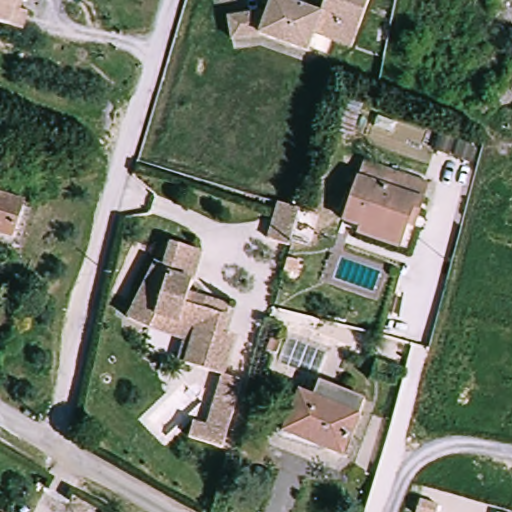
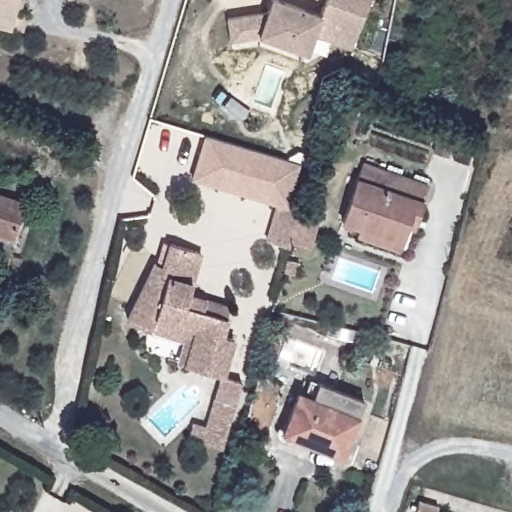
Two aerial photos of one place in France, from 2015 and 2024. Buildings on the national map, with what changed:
unchanged [(0,23),(0,0),(20,0),(16,11),(22,14),(16,29),(0,23)]
unchanged [(308,33),(301,49),(260,31),(245,36),(237,15),(268,4),(270,0),(286,0),(316,13),(321,0),(369,0),(348,50),(308,33)]
unchanged [(337,134),(344,113),(358,118),(352,139),(337,134)]
new [(277,242),(267,239),(273,219),(278,203),(192,178),(205,135),(301,164),(286,205),(299,209),(295,226),(289,246),(277,242)]
unchanged [(358,235),(360,225),(342,220),(358,163),(427,182),(418,214),(415,225),(406,223),(402,237),(399,247),(358,235)]
unchanged [(29,192),(16,234),(0,229),(0,182),(29,192)]
demolished [(286,205),(299,209),(295,226),(282,222),(273,219),(278,203),(286,205)]
unchanged [(182,340),(150,332),(126,319),(154,262),(162,265),(169,243),(203,254),(191,297),(204,299),(204,300),(230,309),(228,318),(224,336),(235,339),(225,375),(185,364),(176,362),(182,340)]
unchanged [(196,425),(211,429),(225,375),(241,379),(244,381),(226,448),(224,448),(193,439),(196,425)]
unchanged [(345,451),(286,433),(297,395),(315,401),(320,384),(338,389),(362,396),(345,451)]

